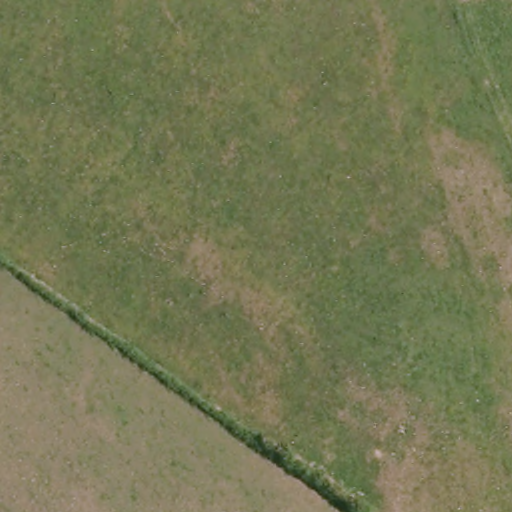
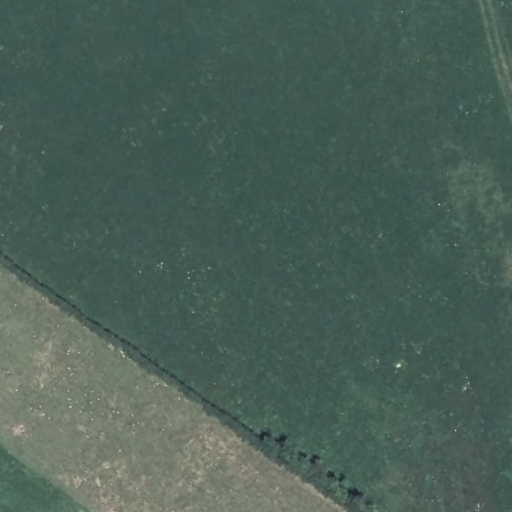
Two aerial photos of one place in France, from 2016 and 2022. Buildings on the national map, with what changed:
[]

